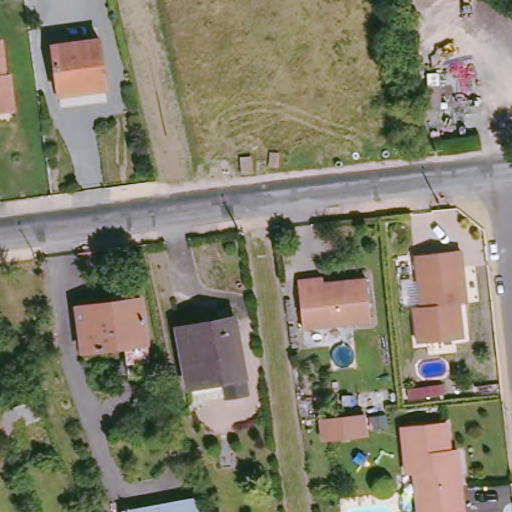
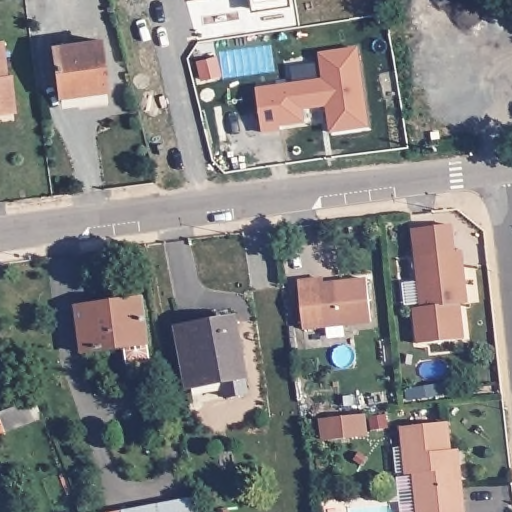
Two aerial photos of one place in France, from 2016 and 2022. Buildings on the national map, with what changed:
new [(290,5),(251,11),(250,0),(289,0),(290,5)]
unchanged [(2,43),(8,74),(14,73),(19,108),(0,111),(0,43),(2,43)]
unchanged [(52,99),(46,50),(93,44),(100,92),(52,99)]
new [(358,48),(369,129),(330,134),(326,107),(305,110),(305,123),(280,127),(280,132),(262,133),(257,90),(321,80),(319,52),(358,48)]
unchanged [(458,307),(463,340),(419,344),(415,308),(423,307),(417,257),(461,253),(465,299),(465,306),(458,307)]
unchanged [(372,322),(304,329),(299,281),(316,279),(324,278),(325,283),(367,279),(372,322)]
unchanged [(125,362),(123,347),(80,351),(75,306),(141,298),(149,359),(125,362)]
unchanged [(223,392),(222,378),(192,383),(181,323),(228,315),(244,387),(223,392)]
unchanged [(35,397),(42,415),(0,428),(0,408),(35,397)]
unchanged [(381,419),(382,432),(366,433),(366,420),(381,419)]
unchanged [(408,474),(403,427),(447,422),(451,460),(458,459),(460,467),(464,512),(420,512),(415,473),(408,474)]
unchanged [(195,503),(198,512),(125,512),(125,511),(195,503)]

